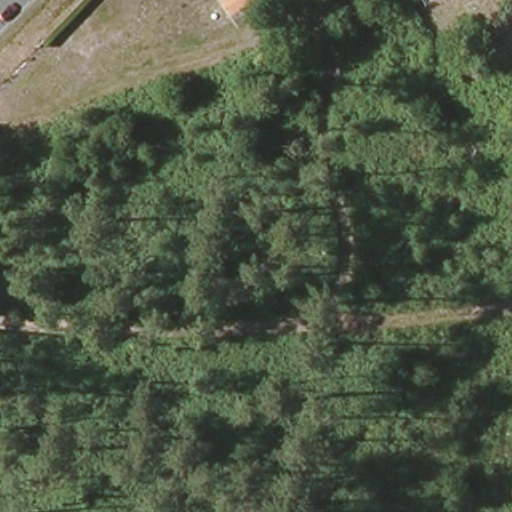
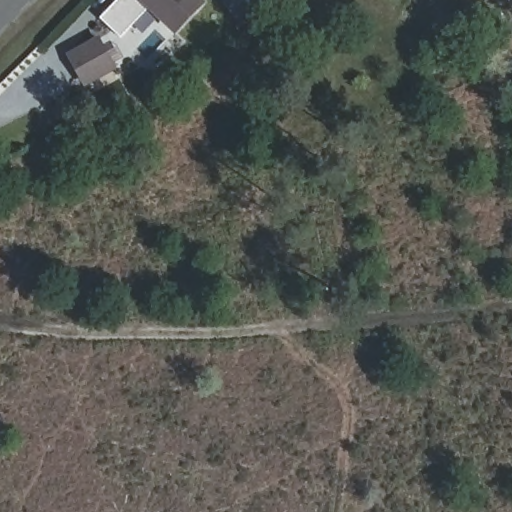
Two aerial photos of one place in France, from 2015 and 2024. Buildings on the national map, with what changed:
new [(207,1),(177,35),(149,9),(121,37),(101,16),(118,0),(205,0),(207,1)]
unchanged [(258,3),(236,18),(233,13),(231,11),(224,0),(256,0),(258,3)]
new [(118,68),(85,86),(67,52),(101,35),(118,68)]

